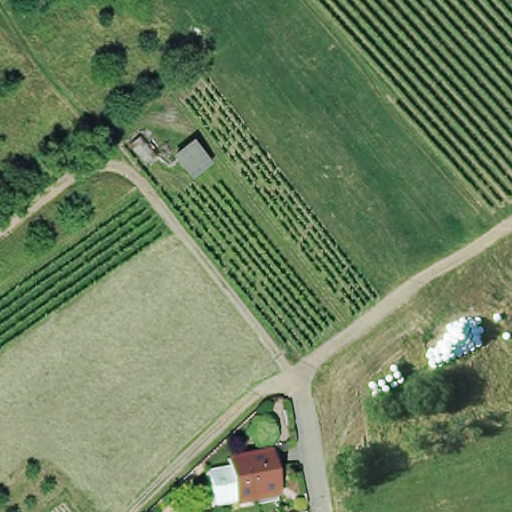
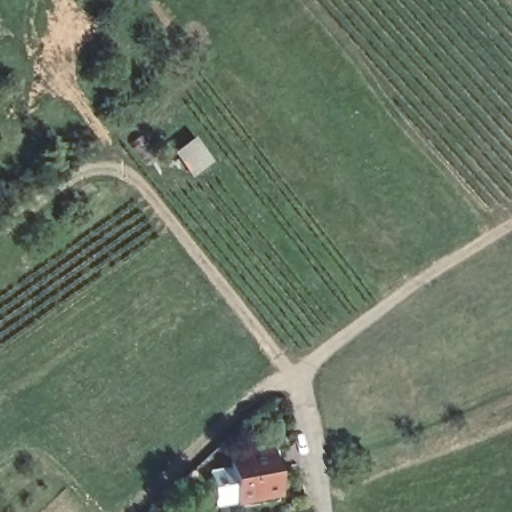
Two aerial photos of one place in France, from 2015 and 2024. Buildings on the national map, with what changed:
unchanged [(178,154),(195,141),(209,161),(193,174),(178,154)]
unchanged [(231,505),(223,463),(267,453),(267,455),(274,453),(277,470),(270,471),(275,496),(231,505)]

